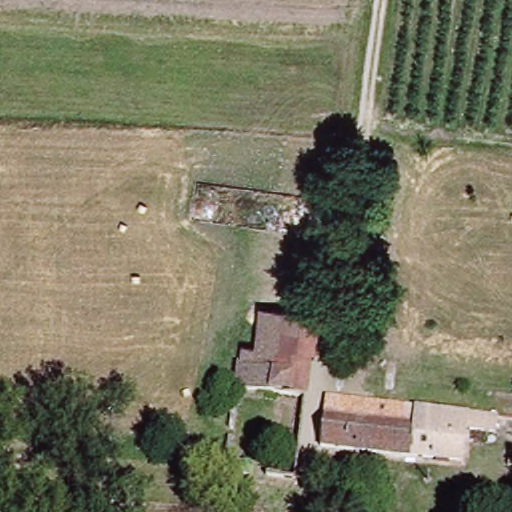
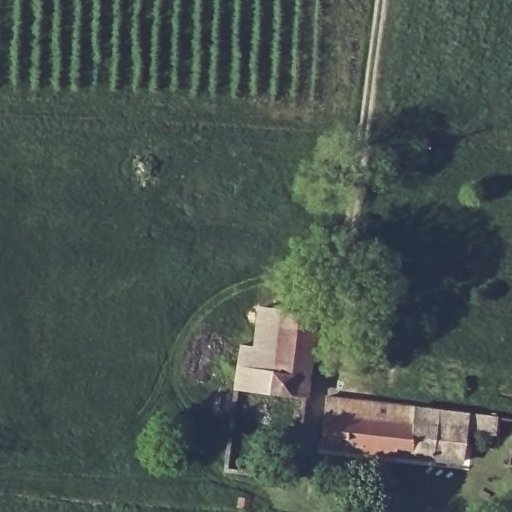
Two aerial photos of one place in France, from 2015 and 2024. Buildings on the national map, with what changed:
unchanged [(240,346),(252,346),(257,309),(314,316),(303,397),(234,387),(240,346)]
unchanged [(387,403),(384,454),(315,445),(323,395),(387,403)]
unchanged [(494,417),(493,434),(461,431),(456,463),(384,454),(387,403),(494,417)]

